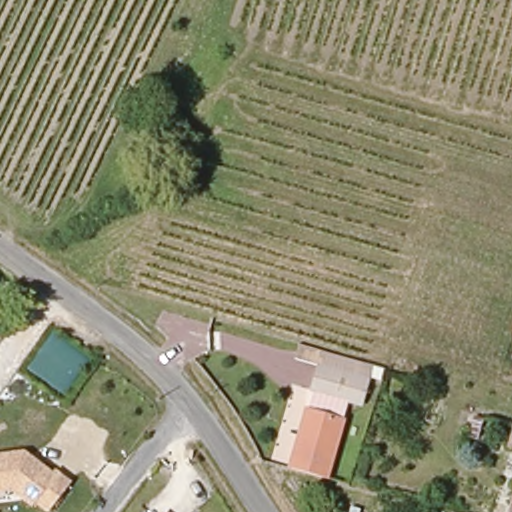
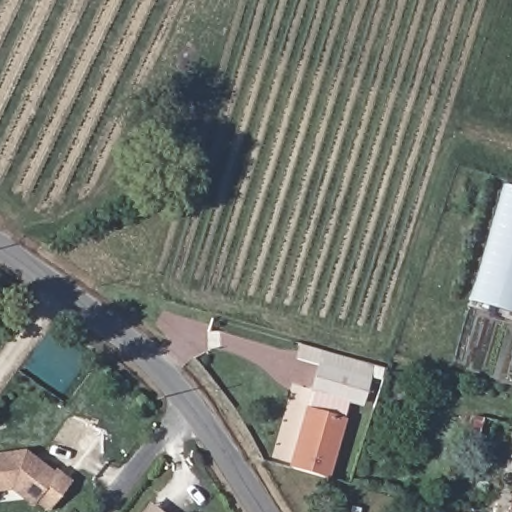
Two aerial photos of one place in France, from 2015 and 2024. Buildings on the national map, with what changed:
new [(506,186),(512,188),(512,311),(473,300),(506,186)]
unchanged [(321,345),(370,357),(385,361),(382,378),(370,376),(363,403),(347,400),(343,418),(337,417),(300,408),(321,345)]
unchanged [(287,468),(303,411),(339,421),(322,478),(287,468)]
unchanged [(495,422),(487,420),(490,411),(497,413),(495,422)]
unchanged [(512,444),(512,451),(510,450),(512,444)]
unchanged [(46,512),(36,505),(33,509),(11,492),(0,494),(0,454),(25,450),(53,472),(56,470),(73,481),(49,512),(46,512)]

